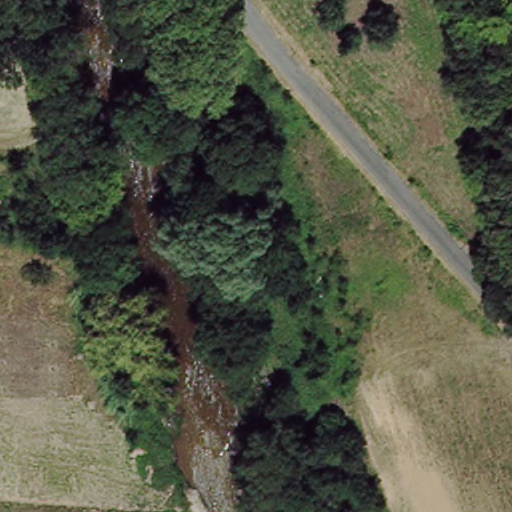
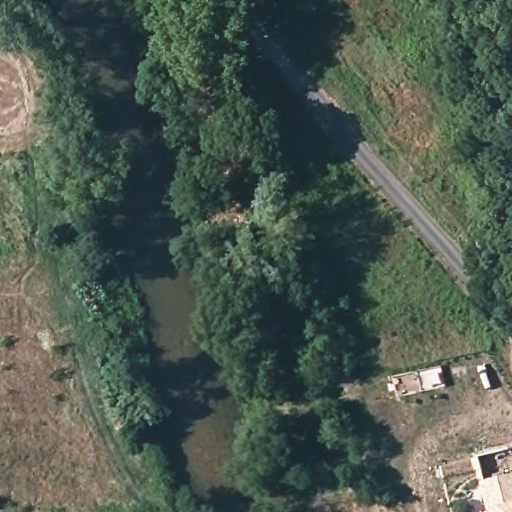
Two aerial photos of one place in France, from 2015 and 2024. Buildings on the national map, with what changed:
new [(512,512),(490,512),(482,483),(512,475),(512,512)]

